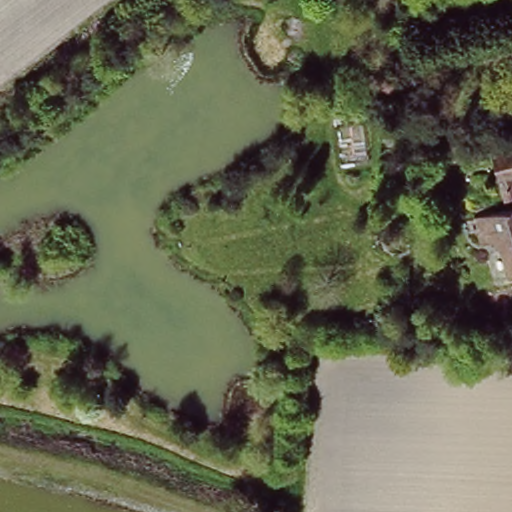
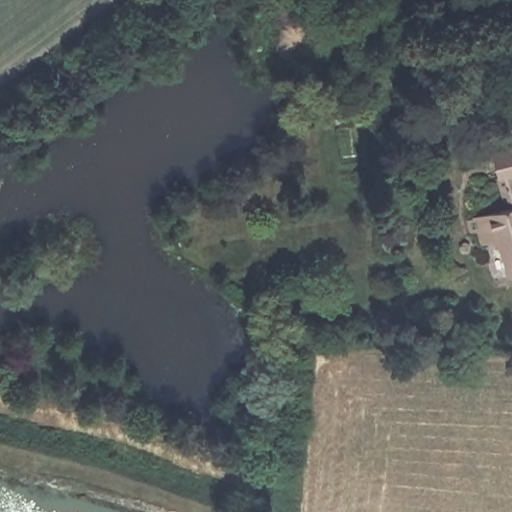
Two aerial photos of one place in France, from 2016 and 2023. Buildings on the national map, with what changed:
unchanged [(503,273),(493,234),(479,237),(474,213),(503,206),(489,151),(512,146),(512,271),(503,273)]

